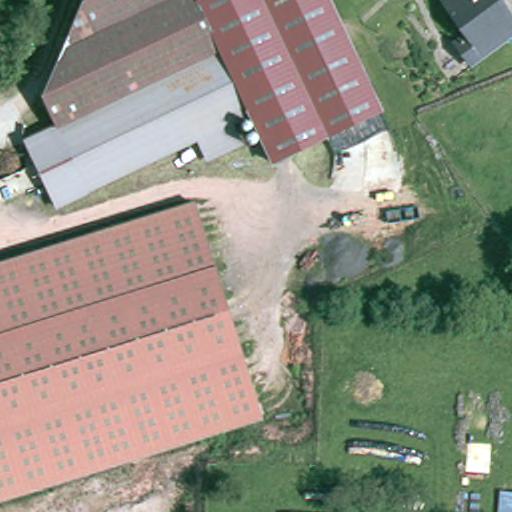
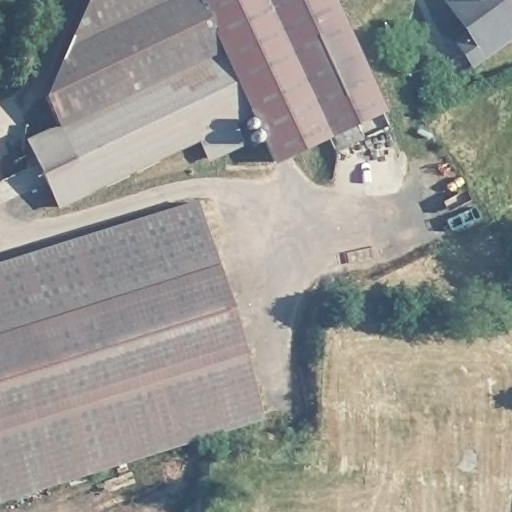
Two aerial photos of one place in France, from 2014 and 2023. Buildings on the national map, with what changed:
unchanged [(275,160),(255,114),(236,124),(244,140),(211,155),(204,139),(94,189),(61,121),(49,95),(88,0),(331,0),(382,110),(275,160)]
unchanged [(462,40),(474,30),(451,0),(503,0),(512,12),(512,32),(475,59),(462,40)]
unchanged [(61,121),(94,189),(60,205),(27,140),(61,121)]
unchanged [(0,501),(0,262),(195,200),(262,418),(0,501)]
unchanged [(503,512),(505,485),(512,487),(512,512),(503,512)]

